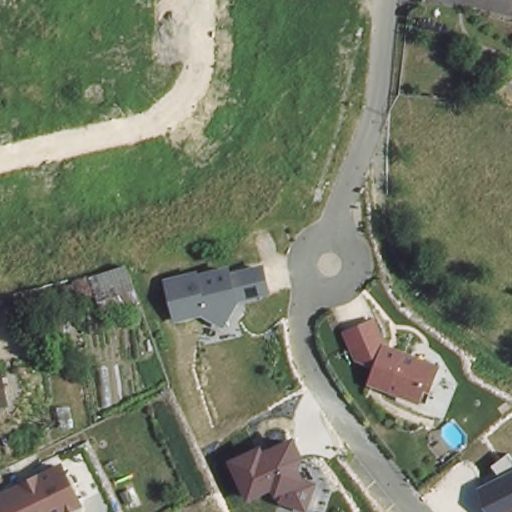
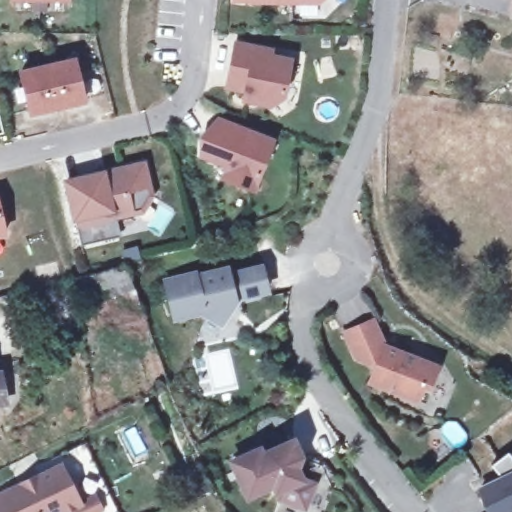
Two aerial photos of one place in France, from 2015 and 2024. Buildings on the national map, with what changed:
new [(12,0),(72,0),(72,3),(12,1),(12,0)]
new [(320,3),(255,2),(255,0),(236,0),(324,0),(320,3)]
new [(236,43),(272,51),(271,56),(291,61),(283,98),(271,106),(246,100),(248,89),(238,87),(228,85),(230,76),(236,43)]
new [(78,56),(90,102),(31,116),(18,69),(78,56)]
new [(277,140),(256,192),(218,178),(223,165),(197,158),(199,138),(217,116),(277,140)]
new [(144,164),(150,192),(137,212),(113,217),(118,238),(81,246),(66,182),(144,164)]
new [(3,231),(0,232),(0,216),(3,231)]
unchanged [(130,261),(131,294),(81,306),(81,300),(79,272),(79,269),(117,263),(123,262),(130,261)]
unchanged [(270,295),(239,302),(223,330),(200,317),(172,324),(162,281),(228,266),(230,271),(262,265),(270,295)]
unchanged [(425,407),(365,384),(370,369),(354,361),(340,332),(375,318),(386,343),(440,365),(425,407)]
unchanged [(5,398),(0,399),(0,373),(5,398)]
unchanged [(305,512),(280,504),(281,499),(268,494),(246,502),(228,462),(261,444),(266,452),(296,437),(307,460),(300,468),(303,476),(322,480),(311,512),(305,512)]
unchanged [(500,476),(491,465),(509,454),(512,458),(512,512),(491,512),(477,488),(500,476)]
unchanged [(62,512),(0,512),(0,488),(60,465),(76,506),(62,512)]

